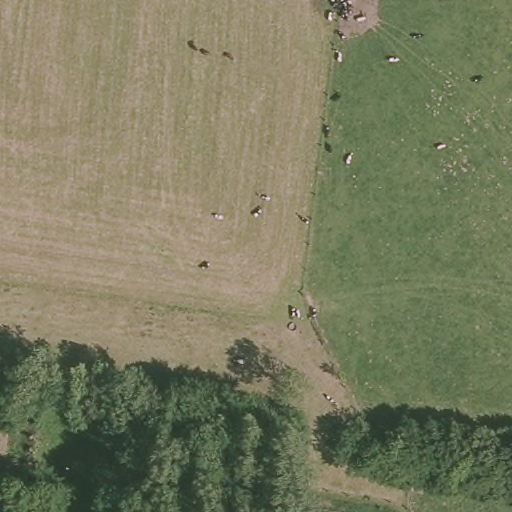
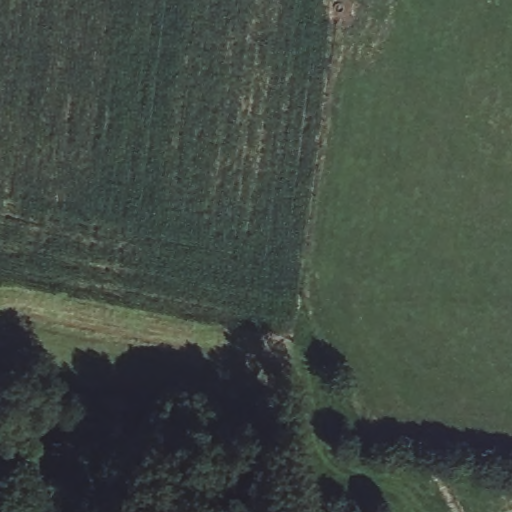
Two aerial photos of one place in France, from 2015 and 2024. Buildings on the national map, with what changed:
[]

